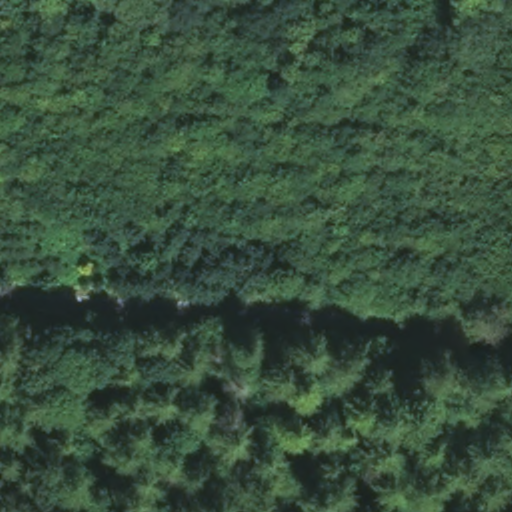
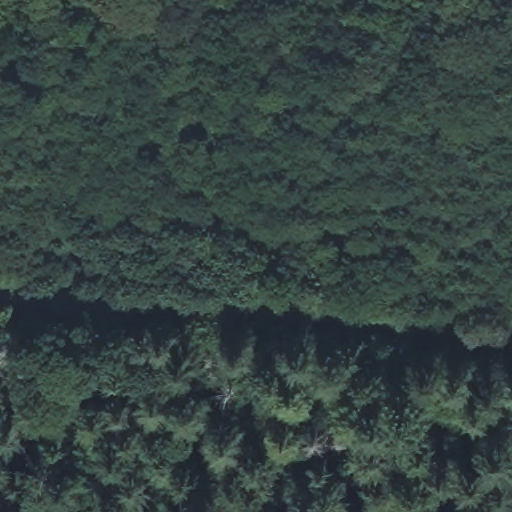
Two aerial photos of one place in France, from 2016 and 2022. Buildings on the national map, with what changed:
[]

